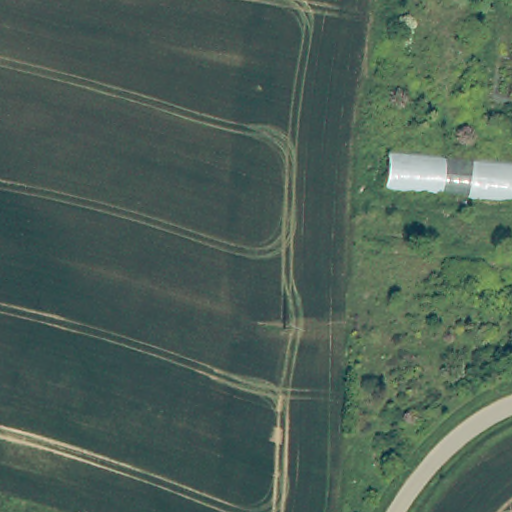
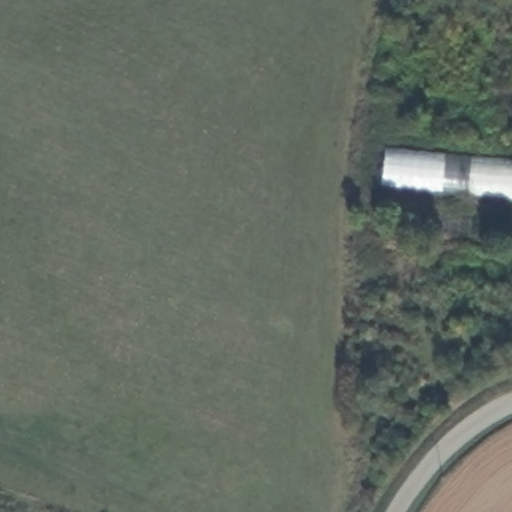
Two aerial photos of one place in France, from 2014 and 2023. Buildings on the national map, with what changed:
unchanged [(512,199),(384,187),(385,147),(512,159),(512,199)]

